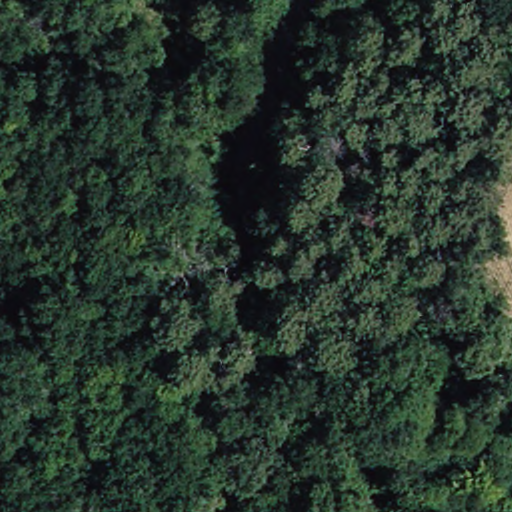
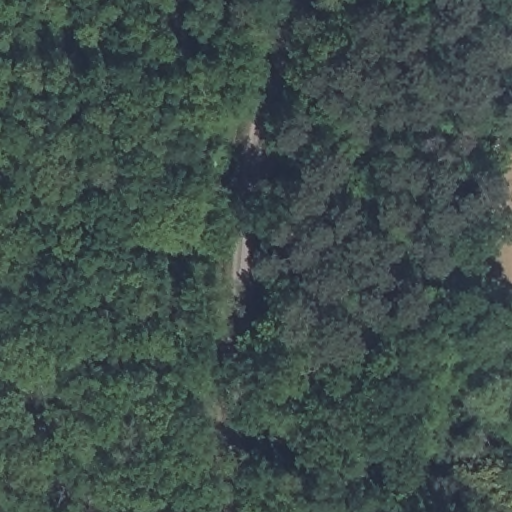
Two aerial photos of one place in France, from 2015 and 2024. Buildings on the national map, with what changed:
unchanged [(217,168),(197,150),(201,145),(187,132),(197,120),(218,141),(217,168)]

